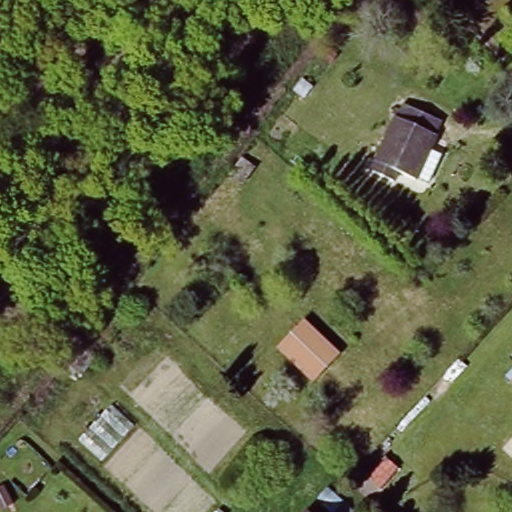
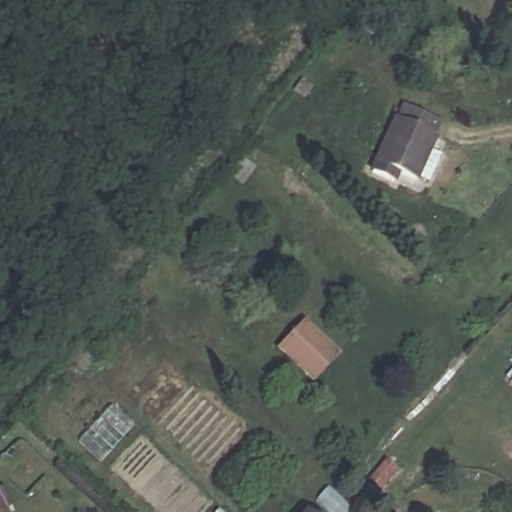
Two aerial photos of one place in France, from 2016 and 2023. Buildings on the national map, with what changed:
unchanged [(429,126),(421,149),(432,154),(421,182),(407,177),(405,181),(390,175),(386,185),(364,177),(394,111),(429,126)]
unchanged [(225,160),(235,168),(224,180),(215,171),(225,160)]
unchanged [(339,353),(316,379),(284,349),(308,323),(339,353)]
unchanged [(75,355),(61,373),(45,360),(59,343),(75,355)]
unchanged [(512,351),(512,356),(509,353),(512,351)]
unchanged [(512,376),(512,384),(508,380),(512,376)]
unchanged [(370,458),(381,467),(364,486),(353,477),(370,458)]

